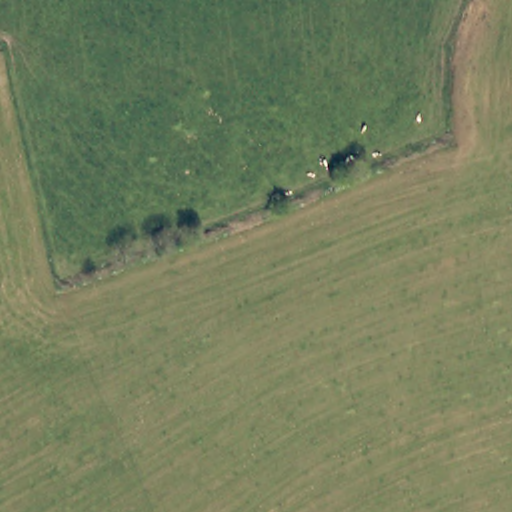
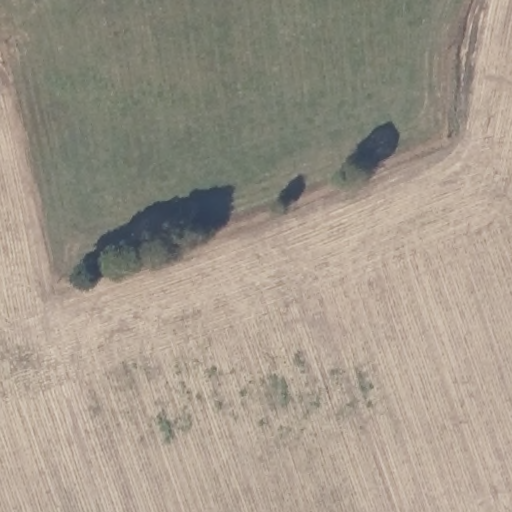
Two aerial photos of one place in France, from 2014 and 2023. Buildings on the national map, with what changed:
[]

